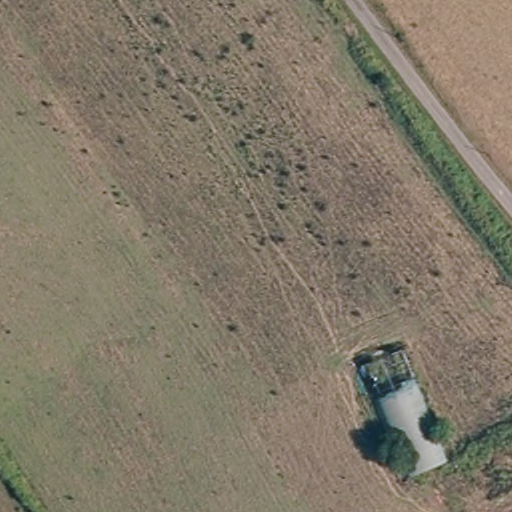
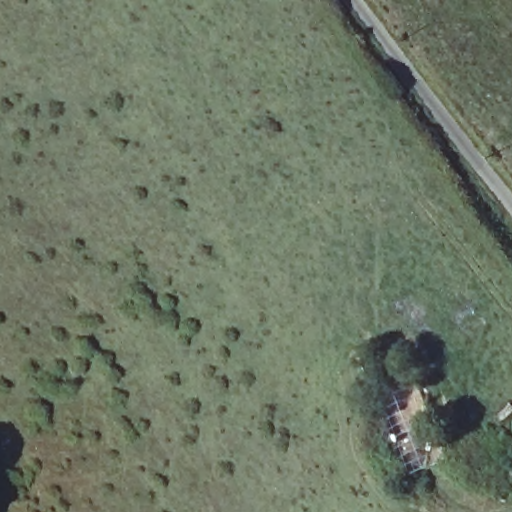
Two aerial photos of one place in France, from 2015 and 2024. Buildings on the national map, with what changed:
unchanged [(405,351),(448,458),(406,475),(360,366),(405,351)]

